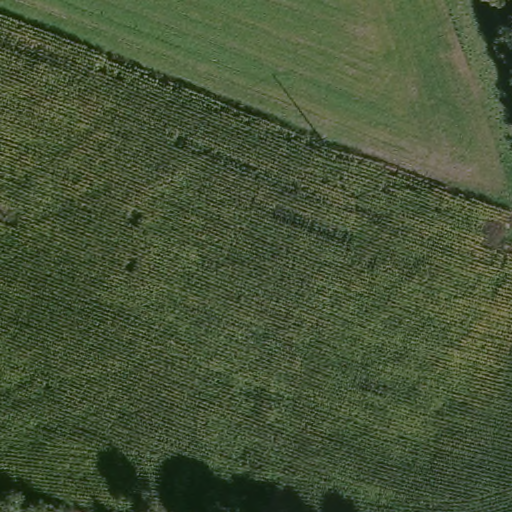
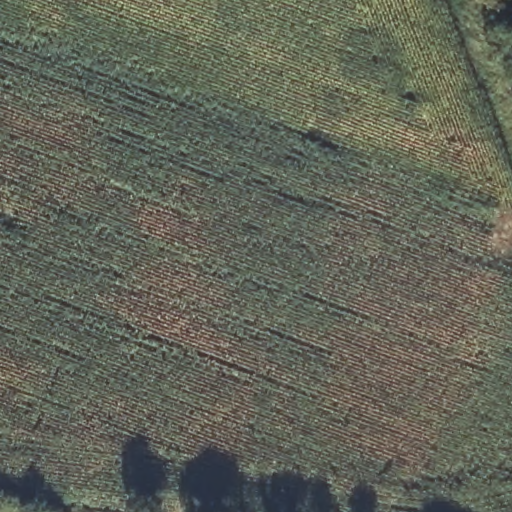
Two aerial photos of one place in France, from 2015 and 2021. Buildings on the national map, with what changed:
[]

